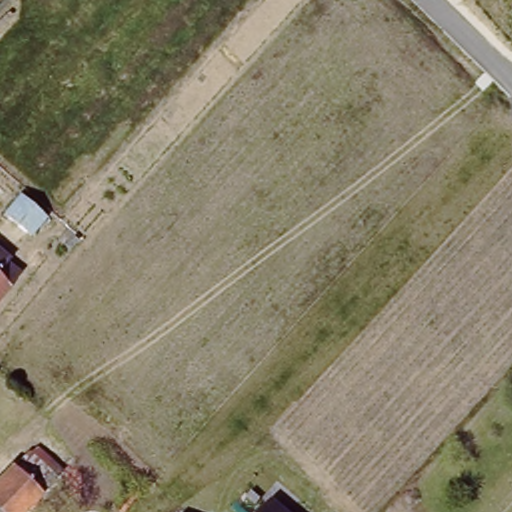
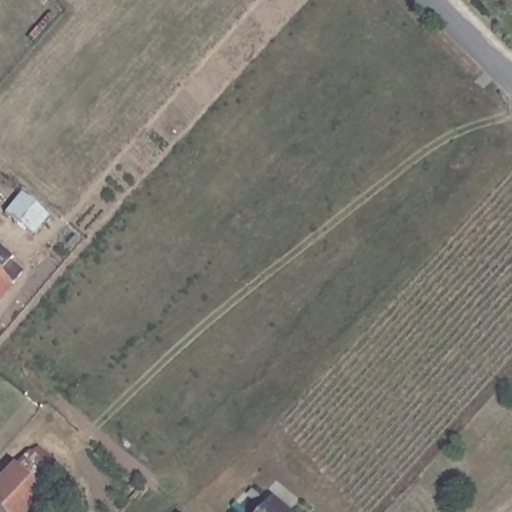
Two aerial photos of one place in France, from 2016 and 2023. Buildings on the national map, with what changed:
unchanged [(45,217),(30,237),(0,213),(0,205),(12,190),(45,217)]
unchanged [(0,299),(0,249),(24,269),(0,299)]
unchanged [(35,502),(26,512),(0,512),(0,482),(7,474),(35,502)]
unchanged [(284,512),(261,512),(270,500),(284,512)]

